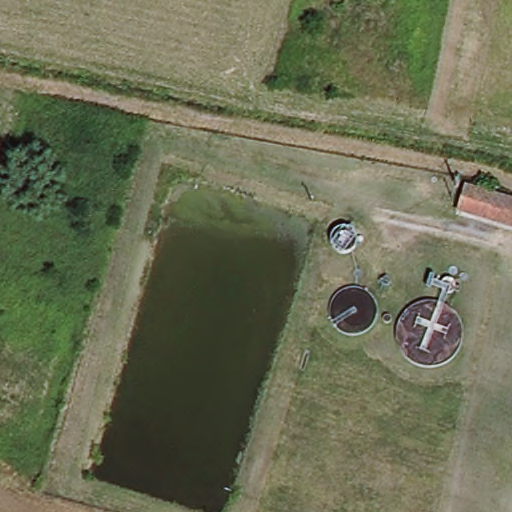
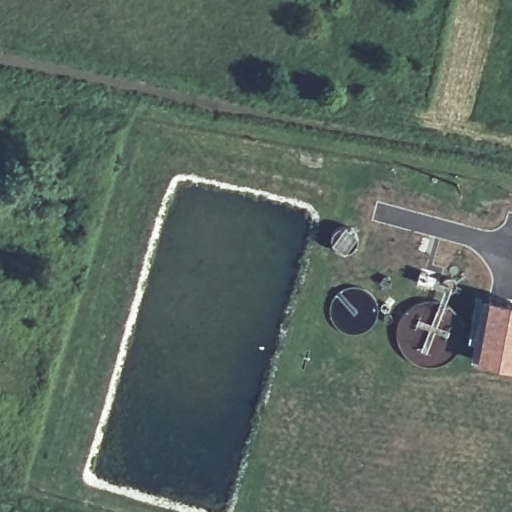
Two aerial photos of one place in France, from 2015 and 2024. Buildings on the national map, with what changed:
unchanged [(512,203),(512,226),(455,210),(461,187),(486,195),(488,185),(494,187),(493,196),(512,203)]
unchanged [(339,255),(334,253),(328,245),(328,237),(330,232),(339,226),(346,226),(351,229),(357,238),(356,245),(354,250),(345,255),(339,255)]
unchanged [(455,290),(450,296),(444,296),(439,290),(439,285),(445,279),(450,279),(456,285),(455,290)]
new [(512,302),(512,369),(473,361),(486,298),(512,302)]

